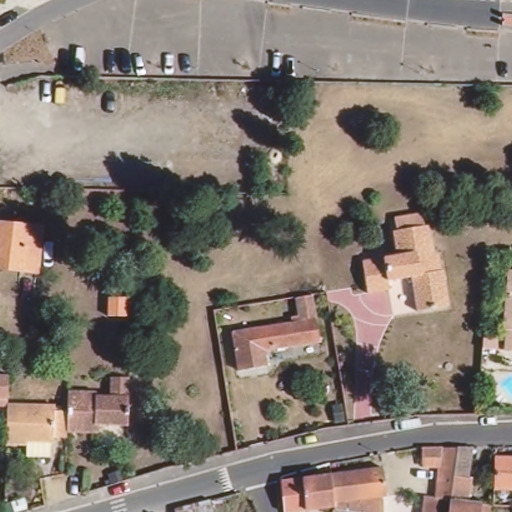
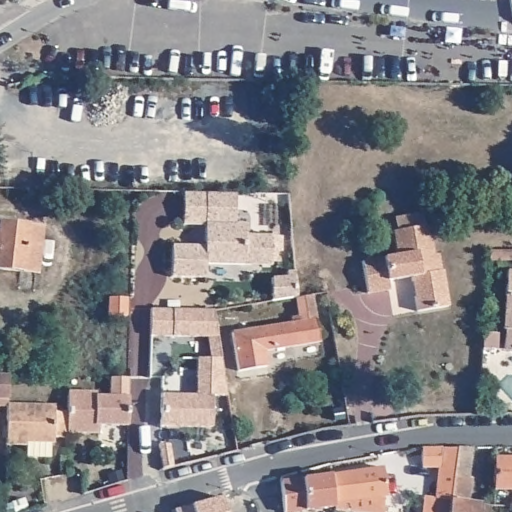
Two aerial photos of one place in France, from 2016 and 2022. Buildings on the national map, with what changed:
new [(236,194),(236,225),(246,224),(246,234),(272,235),(272,266),(206,264),(206,278),(173,277),(174,246),(206,247),(206,224),(184,224),(184,192),(236,194)]
unchanged [(442,272),(447,308),(416,313),(411,278),(388,282),(389,291),(367,295),(362,263),(396,257),(392,233),(396,232),(394,220),(404,218),(422,215),(424,228),(428,227),(433,257),(438,256),(440,273),(442,272)]
unchanged [(47,230),(42,275),(0,269),(0,225),(47,230)]
unchanged [(489,257),(512,256),(512,266),(489,267),(489,257)]
unchanged [(511,337),(506,337),(507,277),(512,277),(512,357),(511,357),(511,337)]
unchanged [(231,338),(291,327),(289,318),(297,317),(293,299),(309,296),(318,347),(263,357),(266,372),(238,377),(231,338)]
new [(196,397),(197,360),(210,360),(208,338),(150,337),(150,311),(213,312),(217,338),(221,361),(226,398),(212,397),(211,429),(160,428),(161,396),(196,397)]
unchanged [(8,376),(7,407),(7,408),(0,407),(0,375),(8,376)]
unchanged [(127,428),(98,427),(98,435),(66,434),(66,416),(66,413),(67,394),(95,395),(95,399),(109,399),(109,380),(128,380),(127,428)]
unchanged [(25,459),(26,446),(6,446),(6,429),(7,408),(7,407),(55,409),(54,413),(66,413),(66,416),(66,434),(66,440),(53,439),(53,444),(50,444),(49,459),(25,459)]
unchanged [(426,495),(434,496),(436,481),(440,482),(446,444),(460,444),(467,444),(474,444),(469,476),(474,476),(471,500),(491,504),(490,512),(423,512),(424,506),(426,495)]
unchanged [(495,459),(496,460),(512,460),(512,492),(494,492),(495,459)]
unchanged [(388,499),(384,500),(386,512),(366,512),(364,501),(336,504),(333,476),(383,469),(388,499)]
unchanged [(337,509),(313,512),(285,512),(284,508),(284,507),(283,493),(283,489),(282,483),(333,476),(336,504),(337,509)]
unchanged [(173,512),(197,506),(209,503),(210,503),(213,512),(173,512)]

